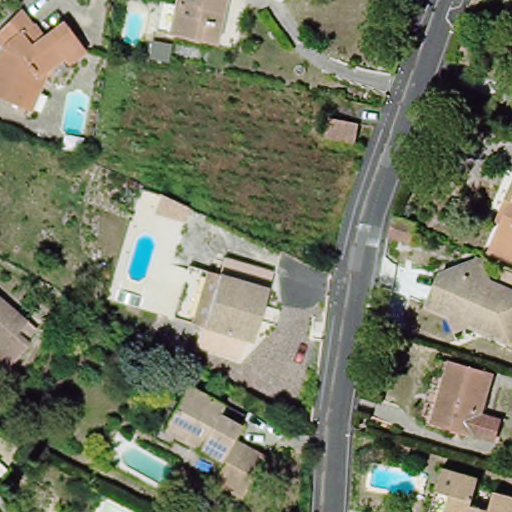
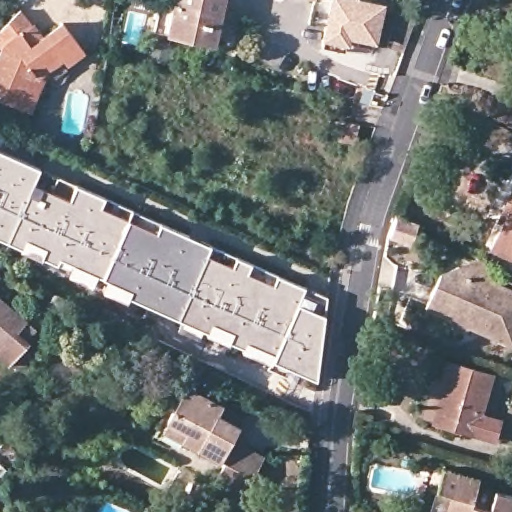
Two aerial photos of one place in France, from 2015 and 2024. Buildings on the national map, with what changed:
unchanged [(160,0),(225,0),(223,9),(219,24),(216,38),(212,37),(155,25),(160,0)]
unchanged [(307,0),(313,0),(313,1),(307,0)]
new [(378,43),(353,40),(351,47),(321,40),(331,0),(373,0),(387,3),(378,43)]
unchanged [(0,49),(3,43),(0,40),(0,27),(18,9),(30,25),(39,36),(60,21),(81,51),(64,64),(59,59),(43,70),(27,110),(17,106),(0,99),(0,49)]
unchanged [(136,53),(146,55),(146,60),(136,59),(136,53)]
unchanged [(328,112),(356,118),(352,139),(324,132),(328,112)]
new [(299,302),(326,316),(317,380),(129,295),(125,300),(102,290),(108,277),(98,273),(92,286),(68,275),(73,263),(60,256),(58,263),(0,236),(0,149),(306,286),(299,302)]
unchanged [(492,249),(505,220),(501,217),(512,194),(512,258),(492,249)]
unchanged [(398,215),(419,221),(418,228),(414,241),(392,234),(398,215)]
demolished [(231,249),(277,262),(256,332),(249,330),(244,347),(206,335),(211,317),(226,265),(231,249)]
unchanged [(498,346),(467,332),(452,337),(446,322),(423,312),(438,276),(455,269),(475,261),(478,262),(488,285),(512,296),(512,347),(510,351),(498,346)]
unchanged [(5,351),(0,347),(0,282),(28,319),(5,351)]
unchanged [(489,374),(478,414),(496,420),(490,438),(432,421),(449,362),(489,374)]
unchanged [(221,458),(165,427),(187,385),(223,405),(245,416),(239,425),(233,436),(221,458)]
unchanged [(266,453),(244,495),(215,481),(226,461),(221,458),(233,436),(238,439),(266,453)]
unchanged [(452,483),(440,480),(446,458),(481,470),(473,495),(491,500),(498,481),(512,485),(512,512),(480,512),(476,511),(475,512),(444,512),(452,483)]

